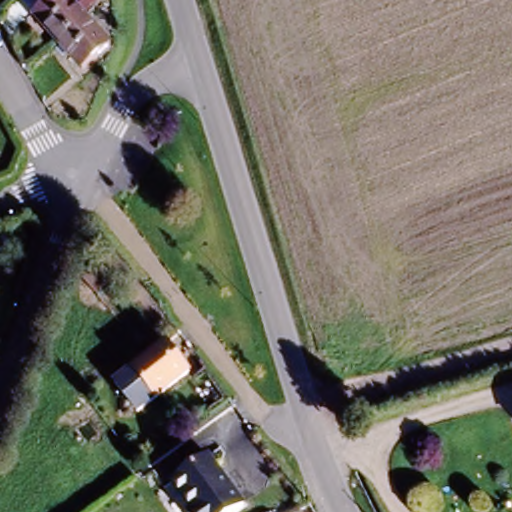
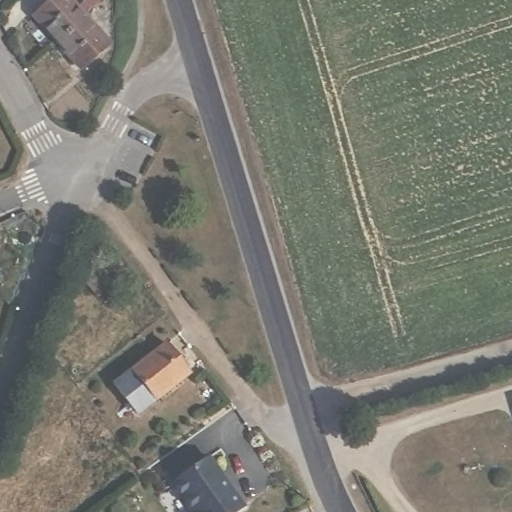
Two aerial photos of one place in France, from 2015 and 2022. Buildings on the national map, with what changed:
unchanged [(33,10),(44,0),(74,0),(83,11),(85,14),(58,37),(33,10)]
unchanged [(110,41),(82,65),(58,37),(85,14),(110,41)]
unchanged [(166,343),(190,373),(137,414),(114,384),(166,343)]
unchanged [(241,512),(191,512),(172,487),(213,457),(248,506),(241,512)]

